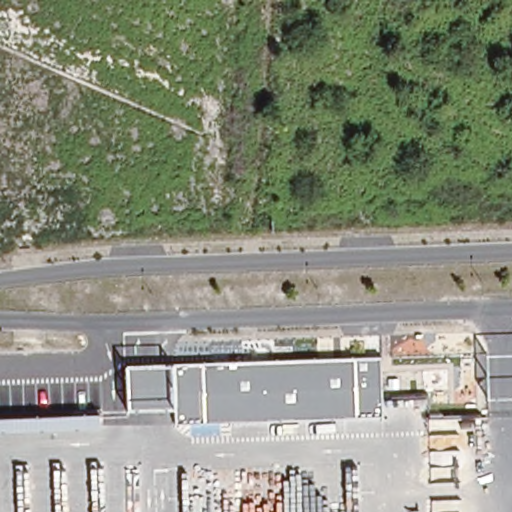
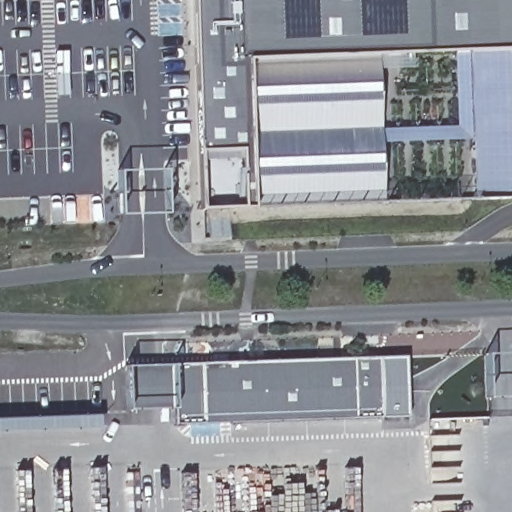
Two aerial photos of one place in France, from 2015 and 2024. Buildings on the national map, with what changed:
new [(206,205),(198,0),(512,0),(512,195),(206,205)]
unchanged [(383,416),(175,425),(174,408),(128,410),(125,367),(172,365),(381,356),(383,416)]
unchanged [(0,431),(0,418),(98,414),(98,427),(0,431)]

